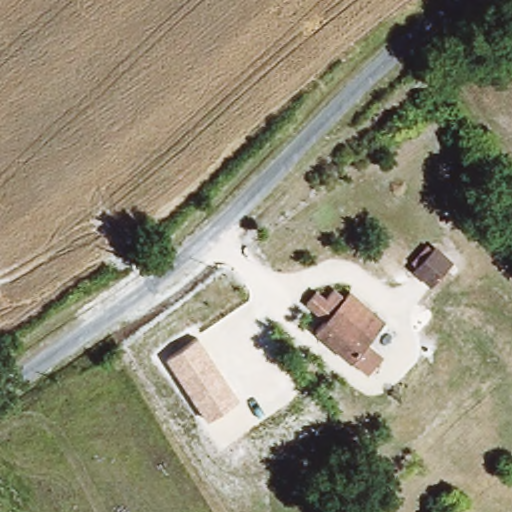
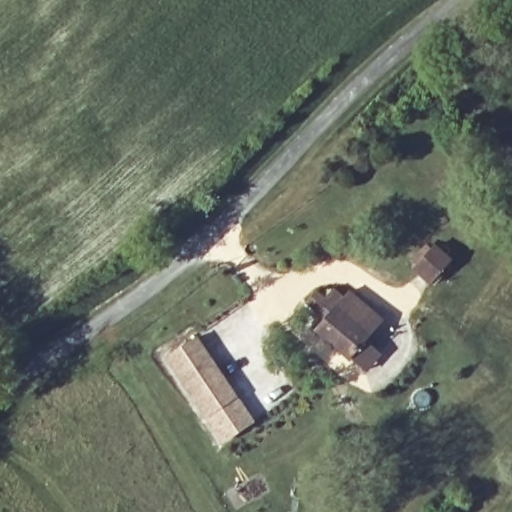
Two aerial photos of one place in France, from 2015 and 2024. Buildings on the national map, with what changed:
unchanged [(437,293),(421,276),(440,259),(456,274),(437,293)]
unchanged [(326,313),(307,292),(318,282),(328,292),(337,285),(345,292),(352,284),(387,318),(350,356),(316,323),(326,313)]
unchanged [(239,396),(207,418),(166,358),(197,337),(239,396)]

